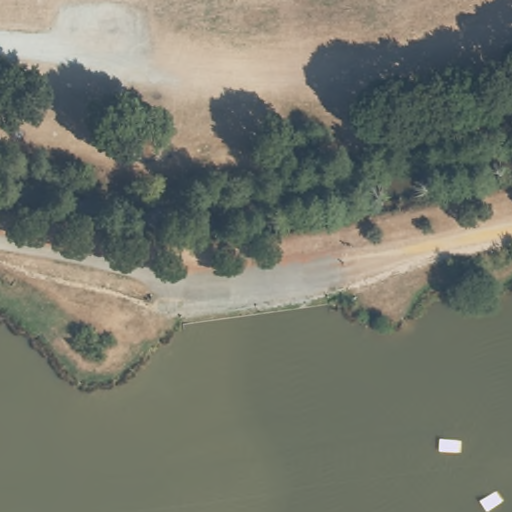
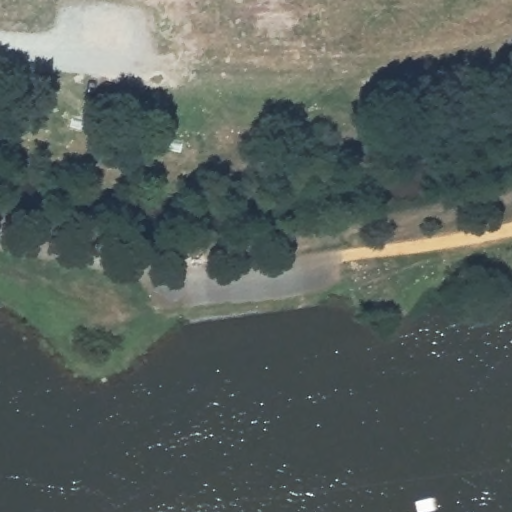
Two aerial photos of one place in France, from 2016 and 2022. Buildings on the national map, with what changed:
[]

